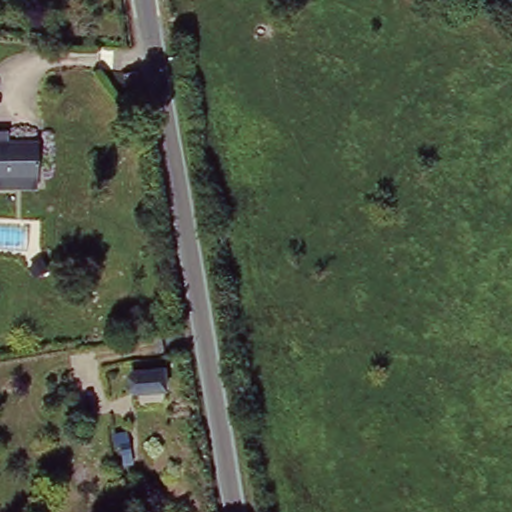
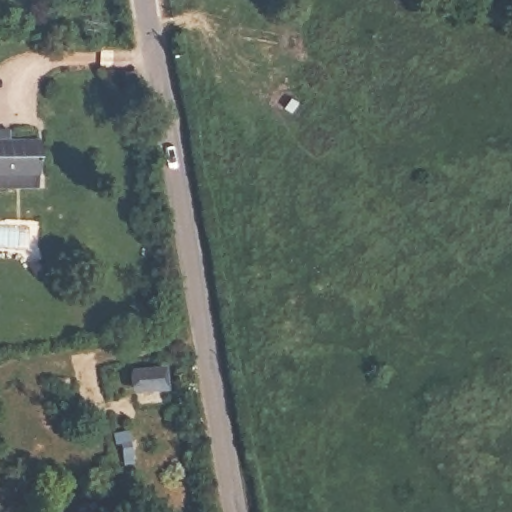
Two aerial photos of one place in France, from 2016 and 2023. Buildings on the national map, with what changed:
unchanged [(135,78),(139,91),(128,93),(125,79),(135,78)]
unchanged [(0,185),(0,128),(10,127),(11,137),(36,138),(36,170),(37,185),(16,184),(0,185)]
unchanged [(162,363),(165,386),(138,389),(134,368),(162,363)]

